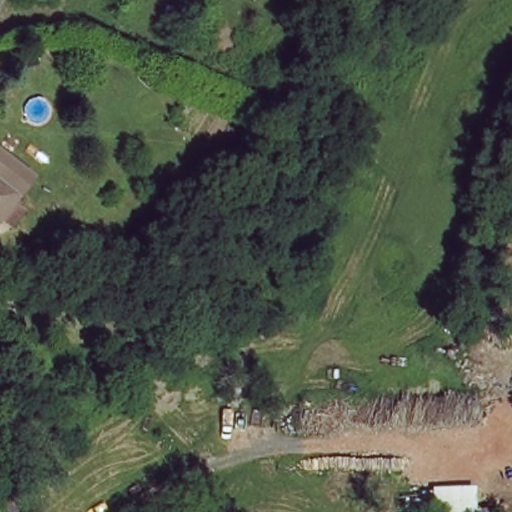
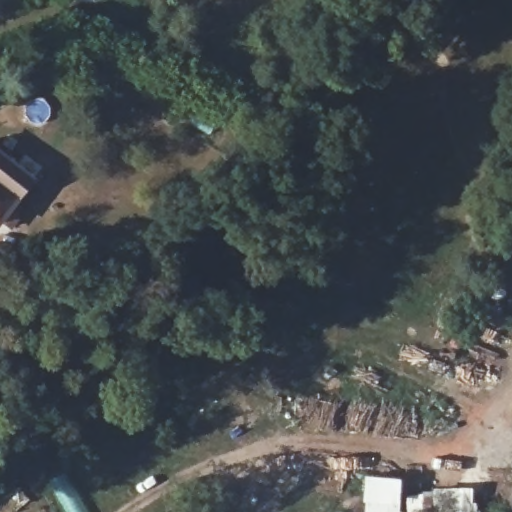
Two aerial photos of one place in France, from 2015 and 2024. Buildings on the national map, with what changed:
unchanged [(1,230),(0,230),(0,158),(36,184),(1,230)]
new [(364,500),(365,475),(400,476),(399,502),(399,512),(364,512),(364,500)]

